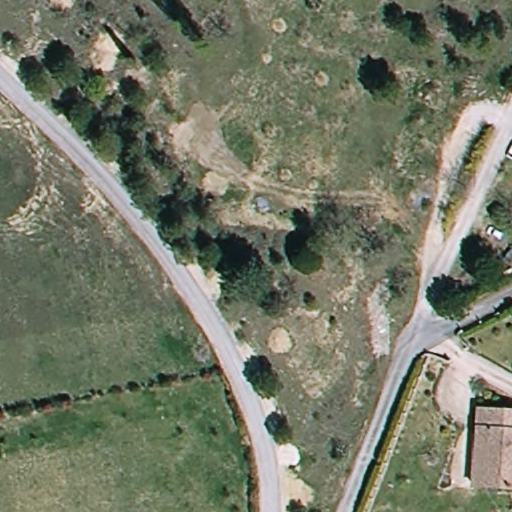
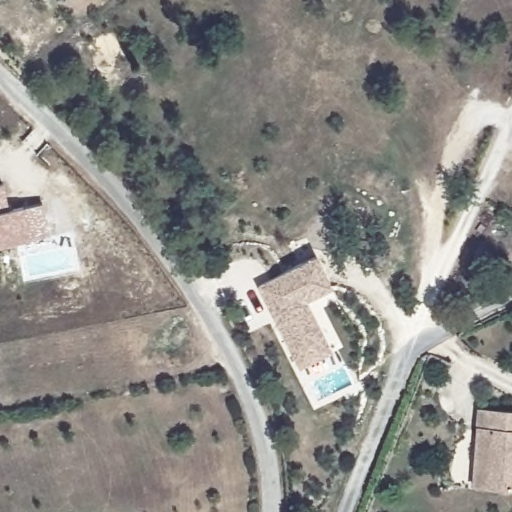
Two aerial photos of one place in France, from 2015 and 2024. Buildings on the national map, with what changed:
new [(25,207),(30,239),(0,244),(0,186),(5,185),(11,210),(25,207)]
new [(316,255),(334,288),(307,302),(333,352),(300,369),(257,285),(316,255)]
unchanged [(475,434),(482,433),(480,414),(512,410),(512,487),(497,489),(482,491),(475,434)]

